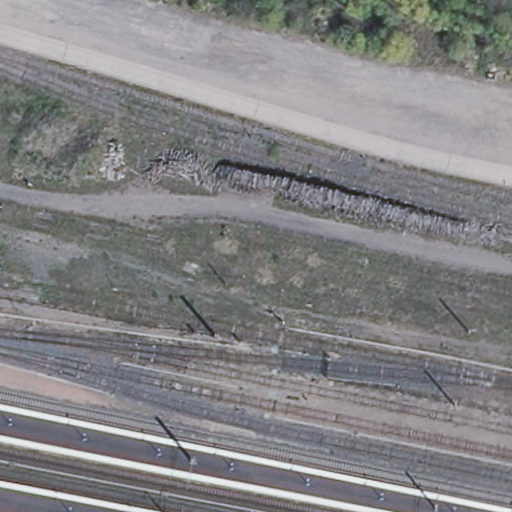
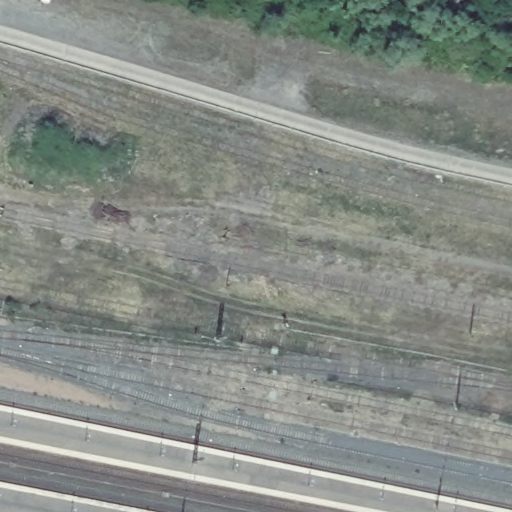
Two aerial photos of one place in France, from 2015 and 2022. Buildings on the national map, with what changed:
[]

